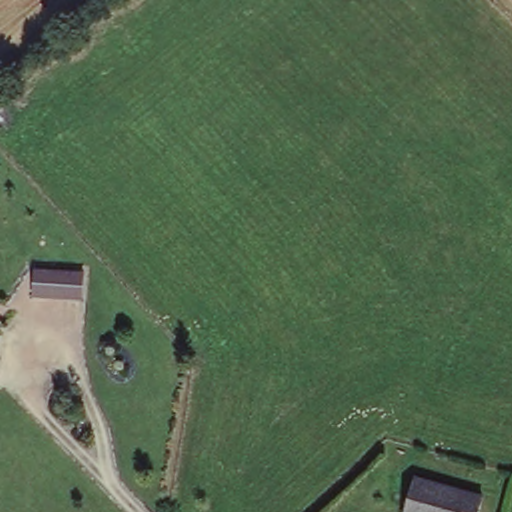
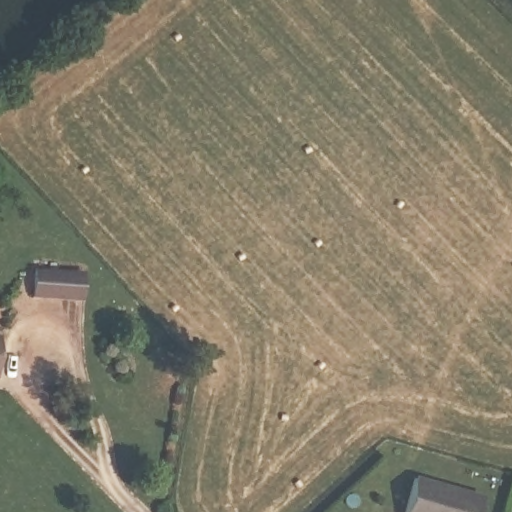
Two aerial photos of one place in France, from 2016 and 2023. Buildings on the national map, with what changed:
unchanged [(33,269),(85,273),(82,300),(31,296),(33,269)]
unchanged [(414,473),(482,492),(477,512),(403,512),(414,473)]

